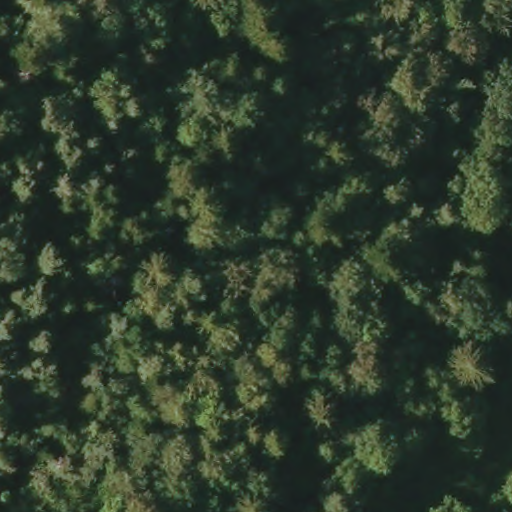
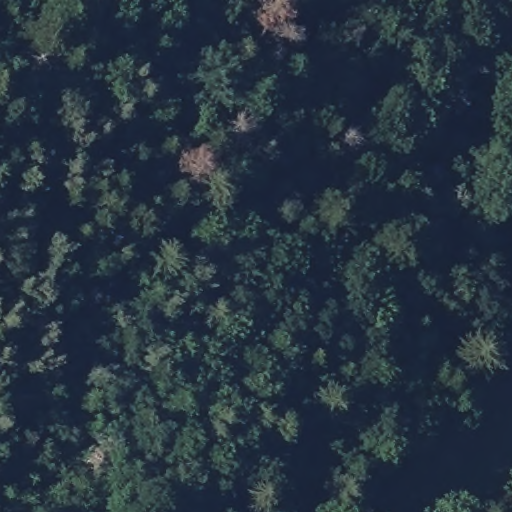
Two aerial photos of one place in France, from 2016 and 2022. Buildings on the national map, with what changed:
[]

